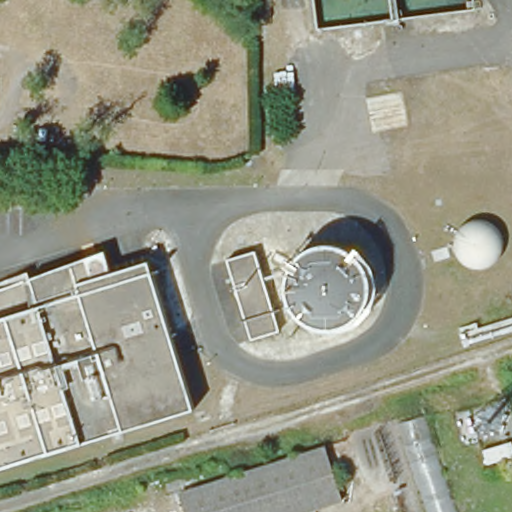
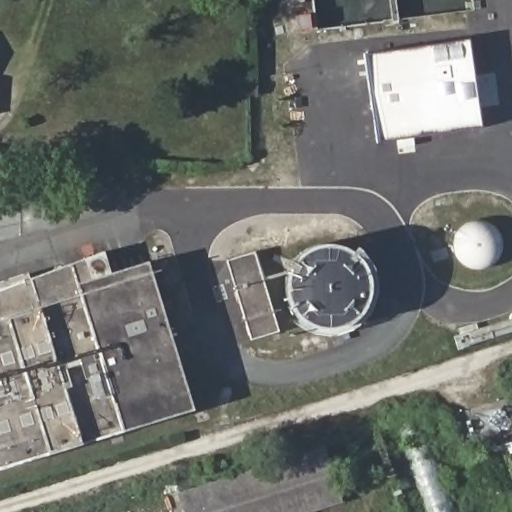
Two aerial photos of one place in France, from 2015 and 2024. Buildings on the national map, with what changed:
new [(468,41),(480,126),(378,140),(366,56),(468,41)]
unchanged [(277,328),(249,335),(224,260),(253,249),(277,328)]
unchanged [(100,250),(106,271),(145,259),(191,406),(0,468),(0,287),(100,250)]
unchanged [(424,414),(456,512),(427,512),(397,422),(424,414)]
unchanged [(320,512),(189,512),(183,492),(325,446),(342,505),(320,512)]

